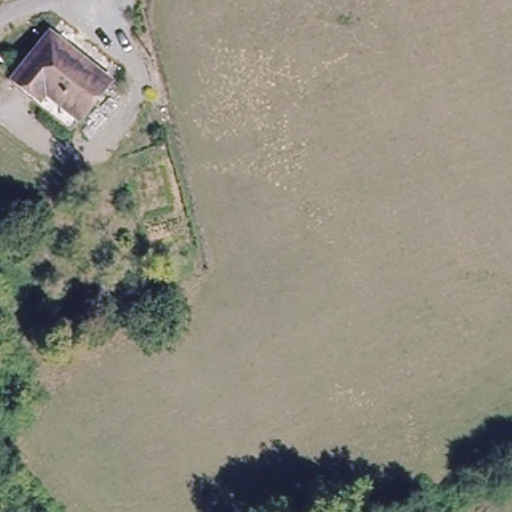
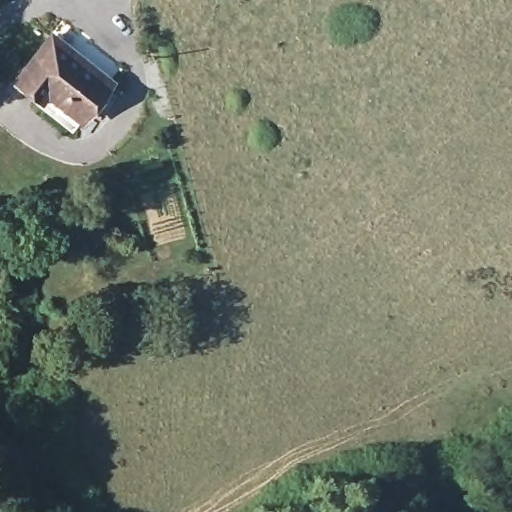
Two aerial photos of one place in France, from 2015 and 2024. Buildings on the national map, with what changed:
unchanged [(115,79),(81,121),(20,73),(55,30),(115,79)]
unchanged [(0,288),(0,278),(2,287),(0,288)]

